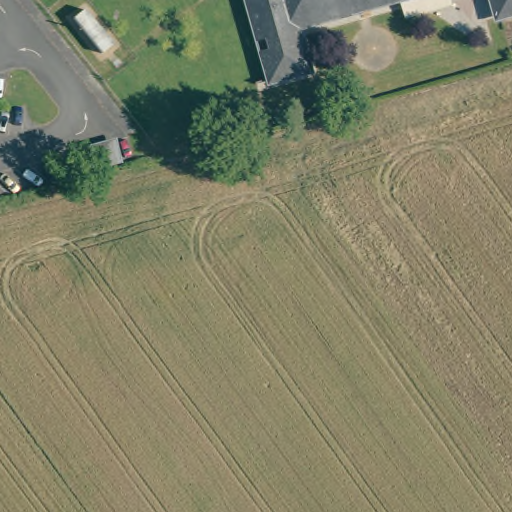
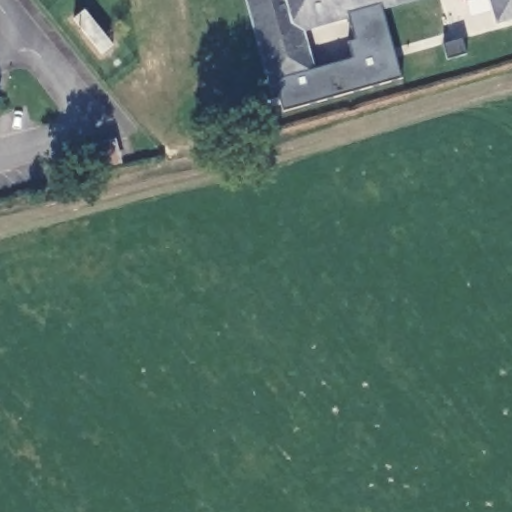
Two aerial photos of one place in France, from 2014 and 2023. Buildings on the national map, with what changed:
unchanged [(298,24),(303,39),(305,39),(313,64),(279,75),(271,48),(275,47),(272,35),(267,37),(257,0),(383,0),(298,24)]
unchanged [(512,9),(505,11),(502,0),(512,0),(512,9)]
new [(285,72),(313,64),(317,70),(352,59),(347,42),(354,41),(345,11),(377,2),(401,77),(284,112),(274,81),(279,75),(285,72)]

